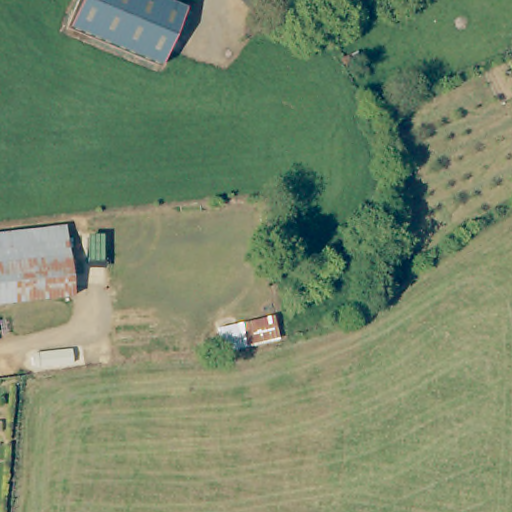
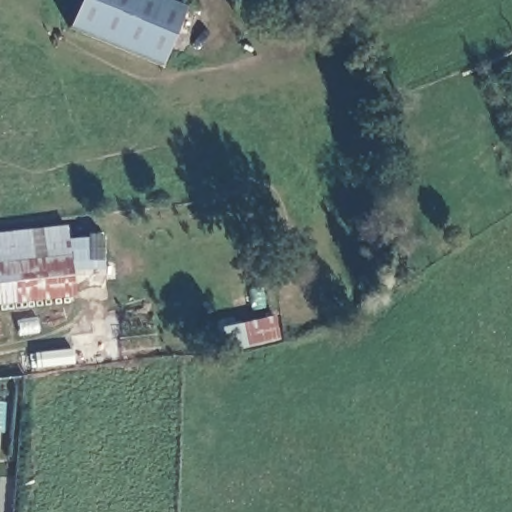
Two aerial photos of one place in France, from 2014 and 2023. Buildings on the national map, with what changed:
unchanged [(64,33),(78,0),(187,0),(157,71),(64,33)]
unchanged [(357,53),(361,64),(347,69),(343,58),(357,53)]
unchanged [(66,227),(74,297),(0,304),(0,234),(66,227)]
unchanged [(225,330),(273,318),(277,338),(230,349),(225,330)]

